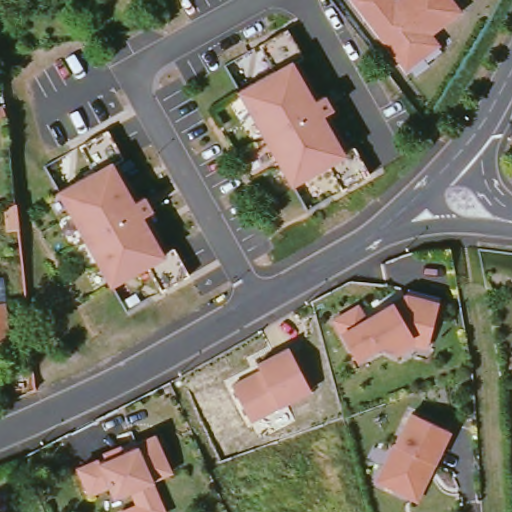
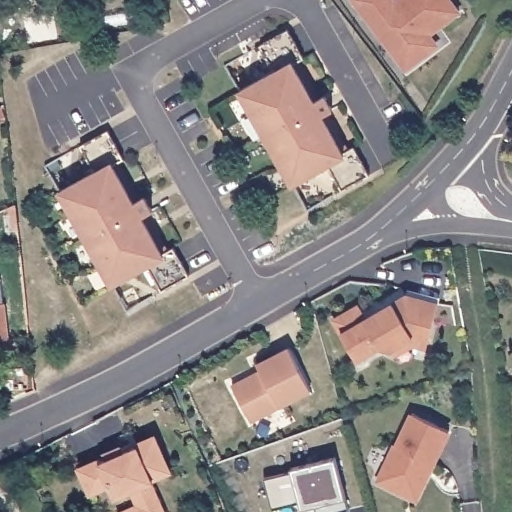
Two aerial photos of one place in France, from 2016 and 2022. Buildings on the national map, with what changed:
unchanged [(434,35),(441,44),(438,46),(442,51),(428,61),(431,64),(415,74),(410,68),(407,71),(399,60),(396,61),(352,0),(395,0),(453,0),(462,12),(434,35)]
unchanged [(355,144),(355,145),(357,148),(370,171),(371,172),(342,188),(328,163),(293,183),(240,90),(275,70),(261,45),(289,29),(290,30),(302,53),(305,56),(305,57),(299,60),(320,97),(325,94),(334,108),(327,111),(349,147),(355,144)]
unchanged [(175,247),(177,250),(184,262),(190,273),(191,275),(163,291),(148,265),(113,285),(61,193),(96,173),(81,147),(109,131),(110,133),(117,144),(123,156),(125,159),(125,160),(119,163),(140,200),(146,196),(154,210),(148,214),(169,250),(175,247)]
unchanged [(416,344),(397,354),(393,348),(381,345),(358,359),(335,319),(359,305),(369,322),(386,312),(384,309),(408,295),(440,303),(431,340),(429,347),(416,344)]
unchanged [(9,345),(0,347),(0,306),(4,305),(9,345)]
unchanged [(252,375),(257,377),(264,374),(258,364),(290,347),(312,390),(252,421),(233,385),(252,375)]
unchanged [(409,495),(379,481),(396,444),(398,445),(414,413),(451,430),(435,464),(427,479),(417,500),(409,495)]
unchanged [(102,461),(104,460),(105,462),(126,453),(141,446),(142,446),(142,443),(159,436),(161,435),(176,471),(174,472),(158,479),(159,481),(157,482),(169,512),(146,512),(144,505),(137,490),(136,491),(120,498),(114,485),(112,486),(95,494),(84,469),(84,468),(102,461)]
new [(266,478),(294,469),(336,457),(346,496),(348,505),(320,512),(318,512),(315,505),(302,508),(301,501),(273,508),(266,478)]
unchanged [(142,505),(145,512),(127,512),(142,505)]

